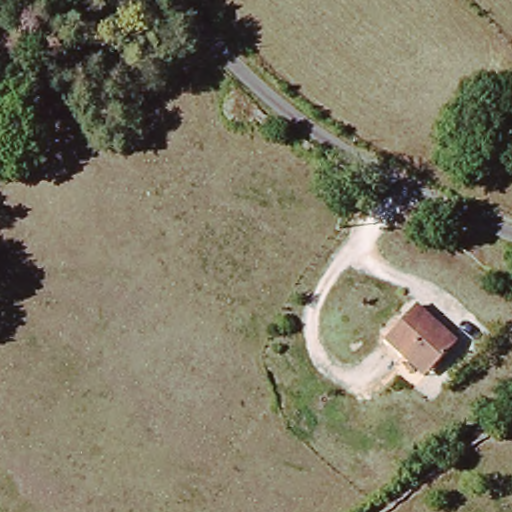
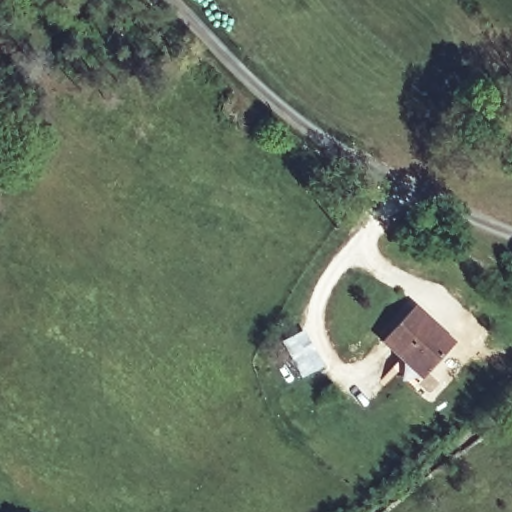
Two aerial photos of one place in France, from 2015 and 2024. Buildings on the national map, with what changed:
unchanged [(429,378),(390,349),(417,313),(456,343),(429,378)]

